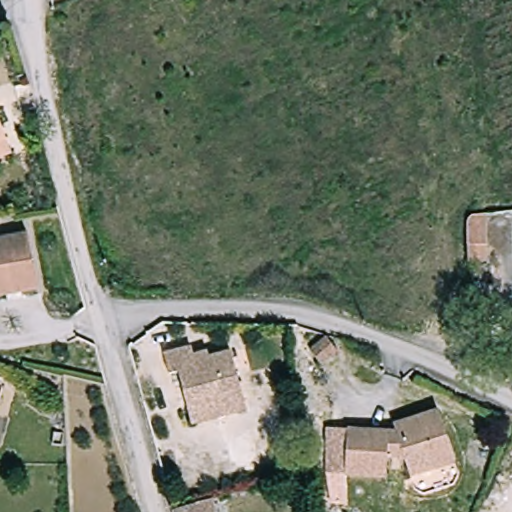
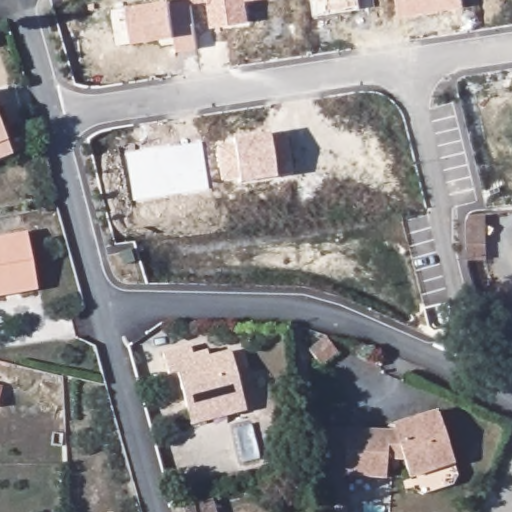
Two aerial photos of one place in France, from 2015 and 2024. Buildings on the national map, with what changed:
new [(169,0),(169,5),(189,2),(198,50),(178,53),(174,37),(133,44),(128,8),(167,0),(169,0)]
new [(249,22),(211,29),(208,2),(191,5),(191,0),(258,0),(246,2),(249,22)]
new [(314,17),(312,0),(361,0),(363,9),(314,17)]
new [(401,19),(397,0),(463,0),(464,7),(401,19)]
unchanged [(0,166),(0,131),(12,162),(0,166)]
new [(234,145),(233,140),(269,135),(286,133),(293,175),(276,179),(239,185),(238,180),(221,182),(216,147),(234,145)]
new [(201,142),(208,190),(134,201),(126,156),(201,142)]
unchanged [(457,245),(463,212),(474,211),(478,244),(457,245)]
unchanged [(38,291),(17,295),(0,299),(0,241),(26,236),(38,291)]
unchanged [(324,335),(336,348),(321,361),(309,348),(324,335)]
unchanged [(192,427),(188,416),(176,376),(168,379),(161,357),(188,349),(193,362),(228,351),(243,398),(246,411),(192,427)]
unchanged [(0,392),(0,377),(4,378),(0,392)]
unchanged [(461,463),(415,477),(409,462),(390,462),(389,482),(327,478),(330,428),(401,432),(398,424),(443,410),(461,463)]
unchanged [(208,506),(210,512),(186,512),(208,506)]

